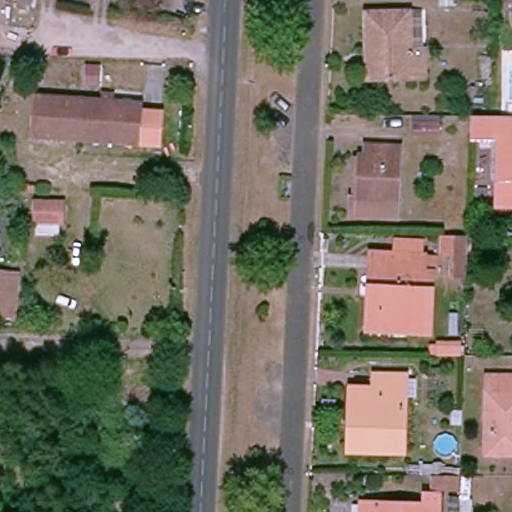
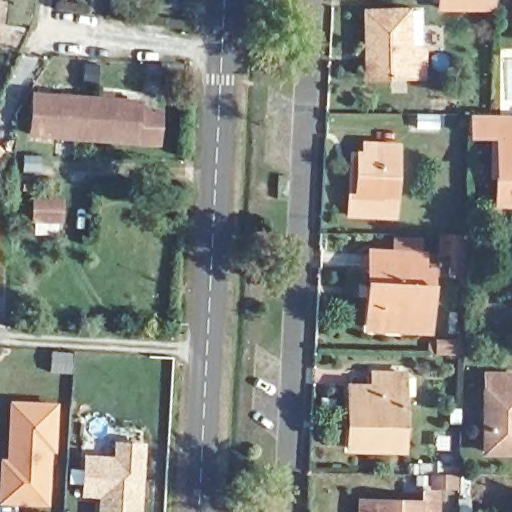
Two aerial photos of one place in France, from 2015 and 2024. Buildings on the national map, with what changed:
new [(495,12),(437,12),(437,0),(495,0),(495,12)]
unchanged [(367,51),(368,15),(408,15),(407,50),(423,51),(424,77),(374,78),(367,78),(367,51)]
unchanged [(149,147),(128,145),(25,138),(27,95),(131,103),(131,112),(151,114),(149,147)]
unchanged [(500,213),(500,146),(471,146),(471,122),(489,122),(512,122),(512,213),(500,213)]
new [(0,150),(2,152),(0,155),(0,150)]
unchanged [(399,220),(349,219),(350,202),(357,201),(358,162),(366,161),(367,151),(400,151),(399,220)]
unchanged [(56,196),(53,219),(29,217),(32,194),(56,196)]
unchanged [(466,275),(450,275),(451,254),(438,254),(438,237),(467,237),(466,275)]
unchanged [(422,273),(431,275),(429,330),(376,327),(377,287),(370,286),(371,257),(423,258),(422,273)]
unchanged [(488,457),(490,382),(512,381),(512,457),(488,457)]
unchanged [(378,382),(407,382),(403,452),(350,452),(351,436),(352,395),(363,396),(378,395),(378,382)]
new [(56,453),(52,453),(47,507),(0,503),(0,459),(7,460),(10,402),(58,403),(56,453)]
new [(98,512),(99,499),(81,497),(84,456),(114,458),(114,442),(147,444),(142,512),(98,512)]
unchanged [(458,493),(442,492),(442,479),(460,480),(458,493)]
unchanged [(427,501),(441,501),(441,512),(376,512),(376,509),(425,512),(427,501)]
unchanged [(363,512),(363,510),(376,509),(376,512),(363,512)]

